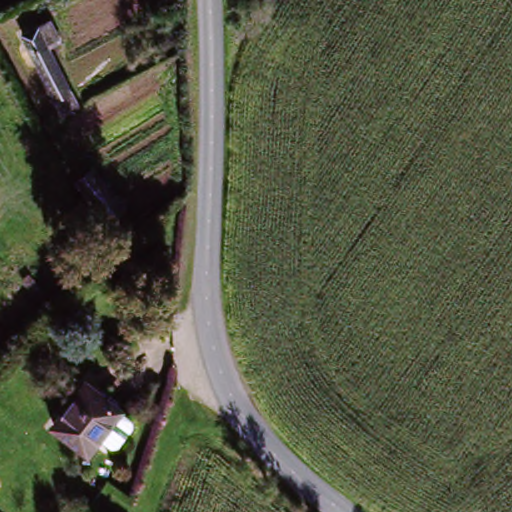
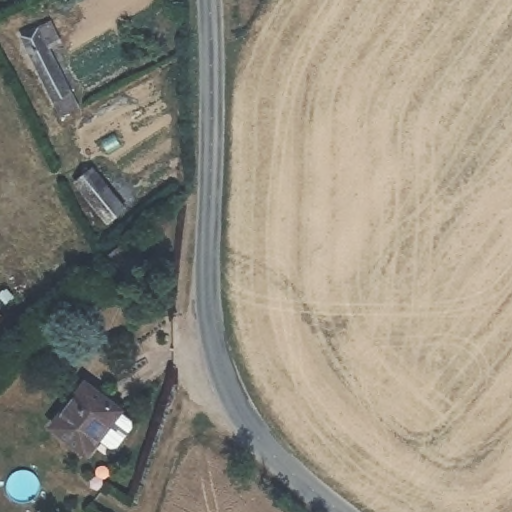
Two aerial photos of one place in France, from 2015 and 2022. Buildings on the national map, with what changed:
unchanged [(22,34),(42,23),(52,19),(62,42),(53,46),(72,86),(81,104),(60,113),(51,95),(22,34)]
unchanged [(81,190),(101,174),(130,210),(111,226),(81,190)]
unchanged [(119,414),(86,454),(52,426),(86,386),(119,414)]

